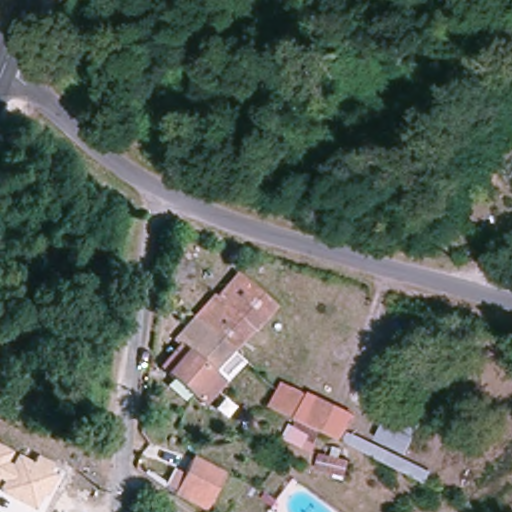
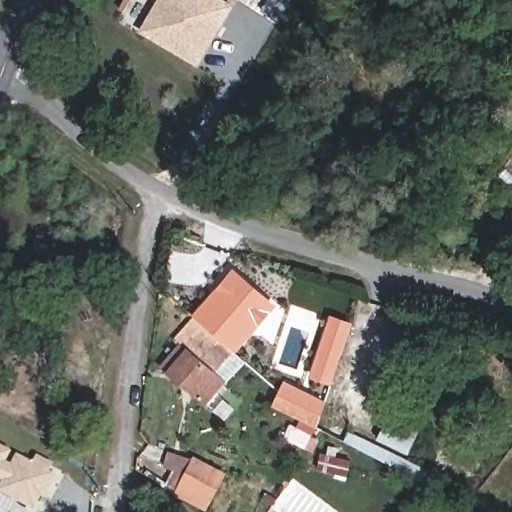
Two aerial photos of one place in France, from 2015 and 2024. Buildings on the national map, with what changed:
new [(138,32),(156,0),(227,0),(234,4),(197,66),(138,32)]
unchanged [(208,295),(212,298),(235,277),(268,310),(250,336),(231,356),(188,315),(208,295)]
unchanged [(231,356),(191,396),(150,353),(188,315),(231,356)]
unchanged [(346,427),(433,470),(428,483),(300,416),(269,402),(279,385),(284,377),(311,390),(354,410),(346,427)]
unchanged [(410,450),(378,435),(392,405),(423,420),(410,450)]
unchanged [(37,453),(56,462),(52,470),(59,475),(47,497),(40,495),(34,507),(0,490),(0,489),(5,478),(0,476),(0,444),(11,450),(7,460),(14,463),(19,454),(33,460),(37,453)]
unchanged [(171,489),(186,465),(195,451),(227,475),(220,486),(204,512),(171,489)]
unchanged [(323,452),(349,459),(345,475),(317,468),(323,452)]

